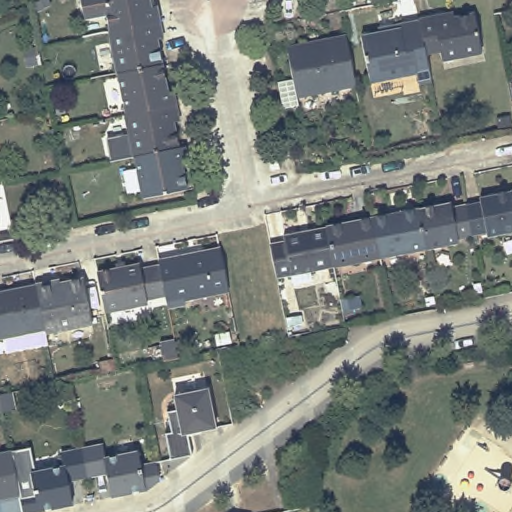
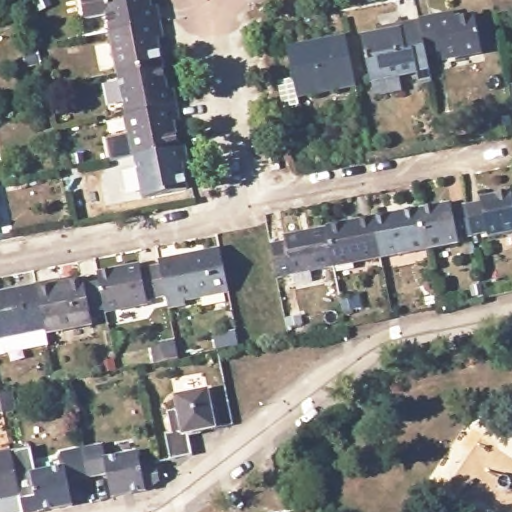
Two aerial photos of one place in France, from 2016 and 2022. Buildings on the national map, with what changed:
unchanged [(110,31),(106,14),(84,19),(80,0),(155,0),(159,21),(110,31)]
unchanged [(440,18),(441,23),(479,15),(487,53),(447,61),(445,51),(431,54),(423,21),(440,18)]
unchanged [(110,31),(159,21),(162,37),(156,39),(161,64),(117,73),(117,74),(108,31),(110,31)]
unchanged [(392,31),(392,27),(423,21),(431,54),(432,62),(436,81),(423,84),(421,71),(404,74),(405,78),(375,83),(366,36),(392,31)]
unchanged [(298,79),(292,47),(350,36),(361,87),(302,99),(303,105),(287,108),(282,82),(298,79)]
unchanged [(161,64),(167,90),(172,89),(176,105),(126,115),(117,73),(161,64)]
unchanged [(126,115),(176,105),(179,121),(172,121),(177,148),(134,156),(133,156),(125,115),(126,115)]
unchanged [(177,148),(184,146),(187,163),(181,164),(186,190),(142,199),(134,156),(177,148)]
unchanged [(276,153),(279,169),(270,171),(267,154),(276,153)]
unchanged [(485,202),(485,197),(512,191),(512,233),(492,238),(491,233),(477,236),(470,205),(485,202)]
unchanged [(455,203),(456,208),(470,205),(477,236),(462,239),(462,244),(431,250),(431,249),(423,210),(455,203)]
unchanged [(423,210),(431,249),(384,258),(377,219),(423,210)]
unchanged [(377,219),(384,258),(338,267),(331,228),(377,219)]
unchanged [(0,229),(0,226),(1,229),(0,229)]
unchanged [(296,276),(281,279),(275,245),(289,242),(288,237),(331,228),(338,267),(315,272),(317,282),(297,286),(296,276)]
unchanged [(220,250),(229,292),(184,301),(185,305),(168,309),(166,296),(160,266),(159,262),(220,250)]
unchanged [(140,265),(141,270),(160,266),(166,296),(146,300),(147,306),(105,313),(97,274),(140,265)]
unchanged [(36,285),(52,282),(52,285),(82,279),(92,324),(45,333),(45,330),(36,285)]
unchanged [(45,330),(0,339),(0,293),(36,285),(45,330)]
unchanged [(284,318),(300,316),(301,324),(286,327),(284,318)]
unchanged [(215,336),(229,333),(231,343),(217,346),(215,336)]
unchanged [(160,343),(175,340),(178,359),(164,361),(160,343)]
unchanged [(208,390),(216,428),(188,434),(192,456),(170,460),(165,434),(171,433),(167,412),(177,410),(175,396),(208,390)]
unchanged [(15,410),(3,412),(0,413),(0,395),(11,393),(15,410)]
unchanged [(137,452),(141,466),(156,463),(157,472),(159,481),(147,490),(99,500),(98,495),(91,496),(89,487),(82,449),(102,445),(105,459),(137,452)]
unchanged [(36,512),(22,512),(21,505),(20,496),(11,452),(31,448),(36,473),(64,467),(61,453),(82,449),(89,487),(91,496),(84,498),(85,503),(36,512)]
unchanged [(20,496),(21,505),(22,512),(0,512),(0,454),(11,452),(20,496)]

